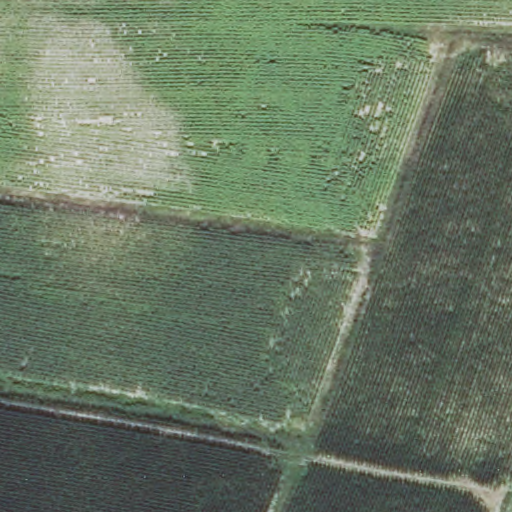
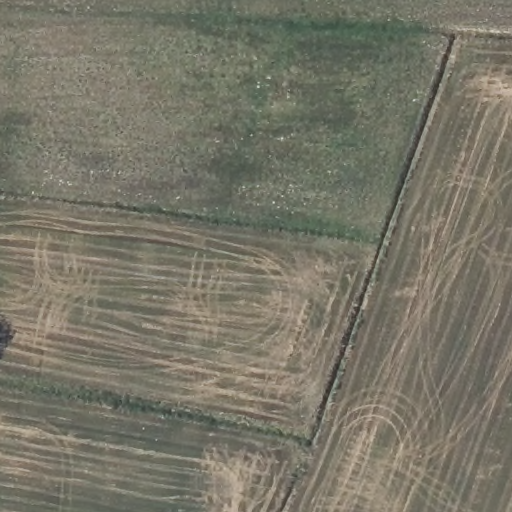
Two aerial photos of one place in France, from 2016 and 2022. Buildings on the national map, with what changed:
[]

